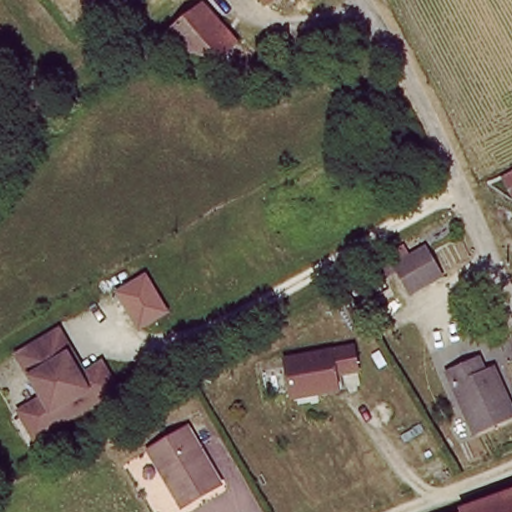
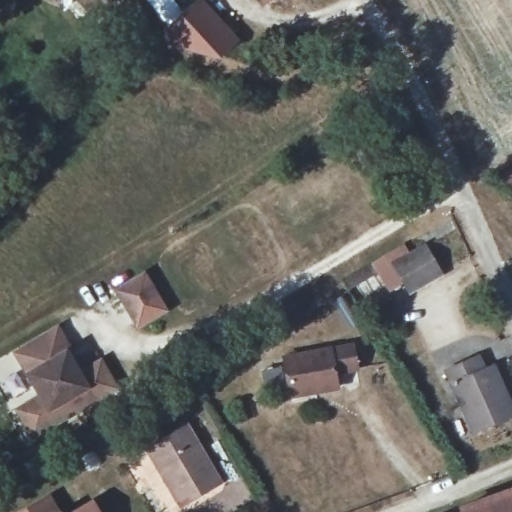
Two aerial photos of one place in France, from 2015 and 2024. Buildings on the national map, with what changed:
unchanged [(167,36),(168,34),(168,32),(169,30),(169,28),(204,0),(239,42),(222,57),(183,46),(172,43),(167,36)]
new [(274,0),(263,6),(260,0),(274,0)]
demolished [(265,0),(268,0),(266,1),(265,0)]
demolished [(290,0),(305,0),(294,6),(290,0)]
unchanged [(439,269),(409,286),(396,265),(381,273),(373,260),(388,250),(394,261),(424,244),(439,269)]
unchanged [(169,312),(138,330),(113,290),(145,272),(169,312)]
unchanged [(110,378),(29,428),(13,403),(37,388),(11,346),(47,323),(51,321),(77,363),(94,353),(110,378)]
unchanged [(350,346),(355,368),(333,373),(336,388),(291,397),(283,360),(350,346)]
unchanged [(492,366),(512,407),(512,414),(475,432),(446,371),(475,357),(483,371),(492,366)]
unchanged [(191,426),(226,482),(211,492),(208,488),(185,502),(153,450),(191,426)]
unchanged [(458,509),(512,489),(512,512),(458,512),(458,509)]
new [(51,494),(59,512),(19,512),(51,494)]
new [(92,500),(99,512),(72,512),(92,500)]
new [(62,510),(63,512),(60,512),(62,510)]

